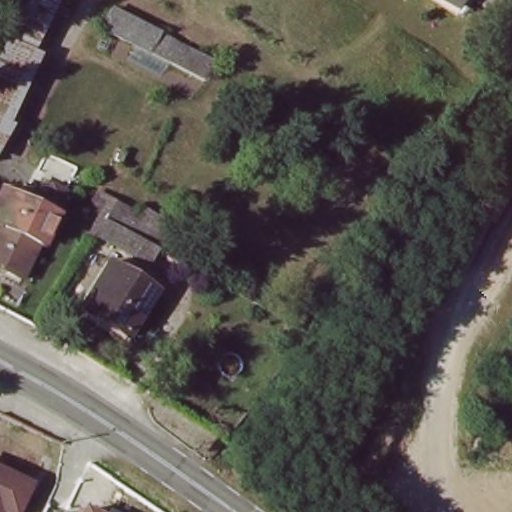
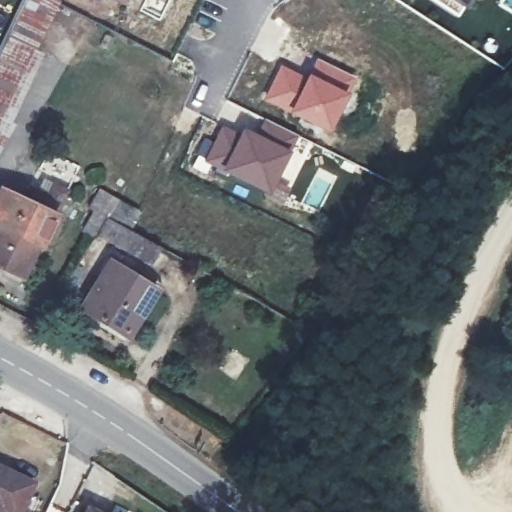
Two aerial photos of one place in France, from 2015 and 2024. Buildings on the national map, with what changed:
unchanged [(22,0),(51,0),(32,43),(7,32),(22,0)]
demolished [(55,0),(77,0),(52,44),(38,36),(55,0)]
unchanged [(457,15),(433,0),(470,0),(468,4),(457,15)]
demolished [(225,61),(213,80),(107,30),(119,6),(225,61)]
unchanged [(38,46),(5,111),(13,115),(0,141),(0,47),(7,32),(32,43),(38,46)]
new [(280,64),(306,75),(316,57),(356,77),(327,131),(263,100),(280,64)]
new [(242,126),(256,132),(263,118),(297,135),(290,150),(269,192),(203,160),(222,124),(239,132),(242,126)]
unchanged [(27,276),(0,263),(0,218),(1,216),(0,216),(0,192),(5,182),(58,210),(27,276)]
unchanged [(167,253),(155,246),(147,262),(93,232),(91,237),(77,230),(88,210),(82,207),(92,189),(129,210),(135,199),(162,214),(182,225),(167,253)]
unchanged [(154,288),(125,336),(78,308),(107,260),(154,288)]
unchanged [(18,488),(0,482),(0,460),(44,477),(28,506),(14,499),(18,488)]
unchanged [(14,499),(28,506),(26,512),(0,512),(0,482),(18,488),(14,499)]
unchanged [(101,512),(84,512),(87,505),(101,512)]

